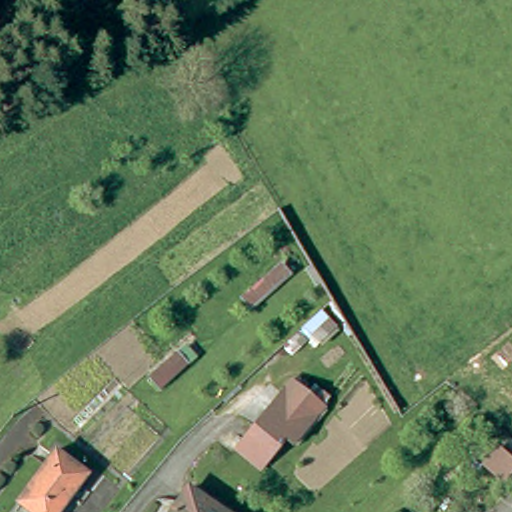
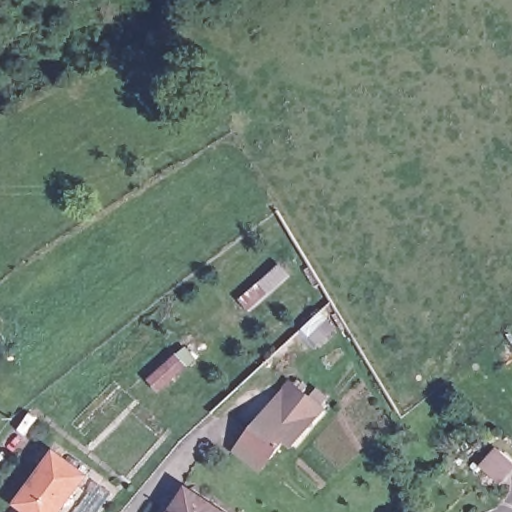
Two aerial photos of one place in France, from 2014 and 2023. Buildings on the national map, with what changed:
unchanged [(250,309),(242,299),(281,264),(290,273),(250,309)]
unchanged [(187,364),(160,389),(150,378),(177,352),(187,364)]
unchanged [(277,445),(250,476),(225,454),(281,387),(315,415),(285,452),(277,445)]
unchanged [(512,457),(512,467),(502,478),(487,464),(502,447),(512,457)]
unchanged [(59,512),(30,512),(17,502),(55,449),(87,474),(59,512)]
unchanged [(189,490),(221,512),(174,512),(189,490)]

